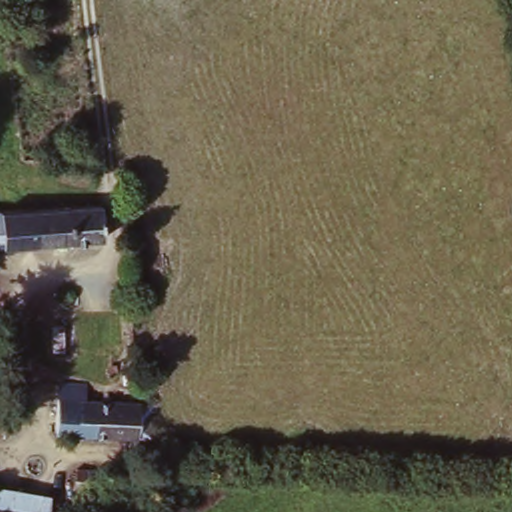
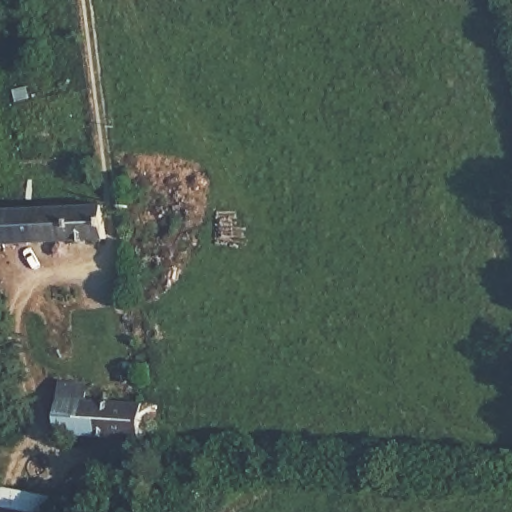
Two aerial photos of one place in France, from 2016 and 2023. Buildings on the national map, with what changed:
unchanged [(30,185),(31,210),(100,208),(101,240),(0,243),(0,185),(30,185)]
unchanged [(52,435),(55,382),(85,385),(84,400),(129,404),(155,406),(152,441),(129,440),(52,435)]
unchanged [(105,472),(102,488),(100,487),(72,487),(73,470),(105,472)]
unchanged [(47,488),(45,512),(0,512),(0,480),(47,488)]

